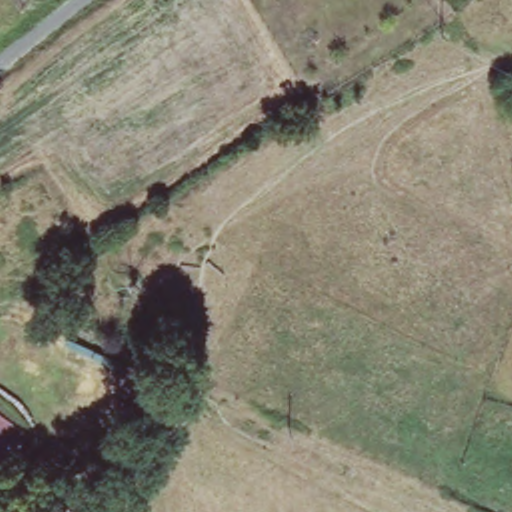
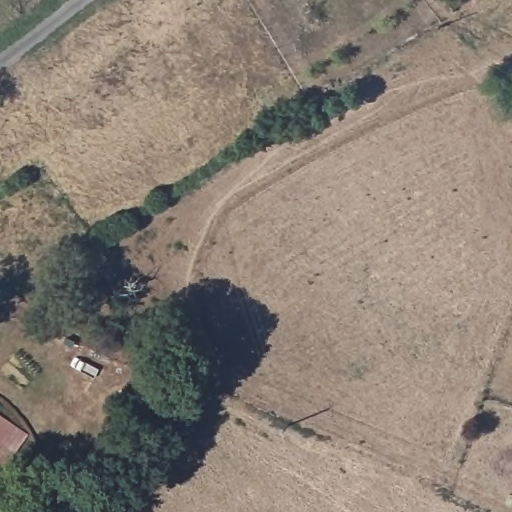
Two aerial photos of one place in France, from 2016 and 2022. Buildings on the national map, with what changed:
unchanged [(0,445),(0,442),(1,443),(0,445)]

